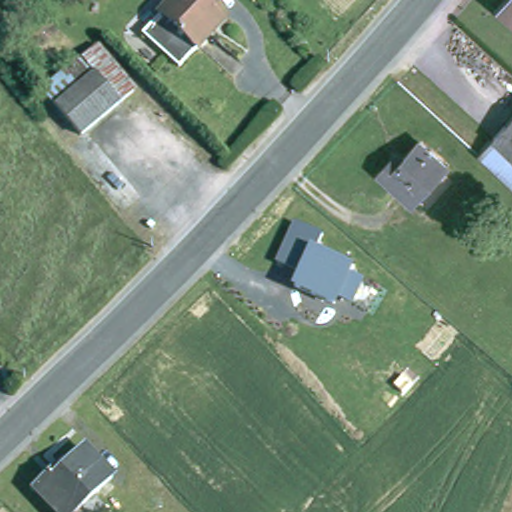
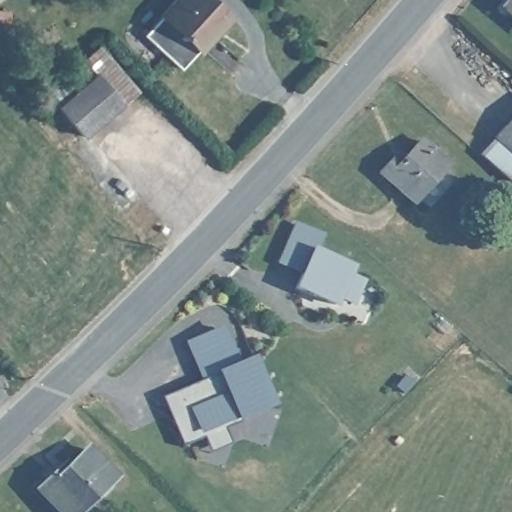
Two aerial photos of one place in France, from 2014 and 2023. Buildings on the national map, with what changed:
unchanged [(148,30),(175,0),(218,0),(223,5),(232,13),(218,27),(185,63),(148,30)]
unchanged [(509,0),(512,0),(512,17),(502,9),(509,0)]
unchanged [(49,92),(102,49),(138,93),(85,136),(49,92)]
unchanged [(483,151),(512,119),(512,177),(490,157),(483,151)]
unchanged [(412,204),(380,174),(395,159),(400,164),(419,142),(445,167),(412,204)]
unchanged [(323,231),(317,250),(353,265),(350,271),(365,280),(353,309),(340,304),(335,309),(292,290),(298,272),(277,265),(296,220),(323,231)]
new [(222,326),(238,362),(252,357),(273,407),(240,422),(240,424),(224,430),(230,445),(210,453),(203,437),(181,447),(160,397),(200,381),(184,342),(222,326)]
unchanged [(60,473),(90,445),(117,474),(78,512),(67,512),(41,485),(56,470),(60,473)]

